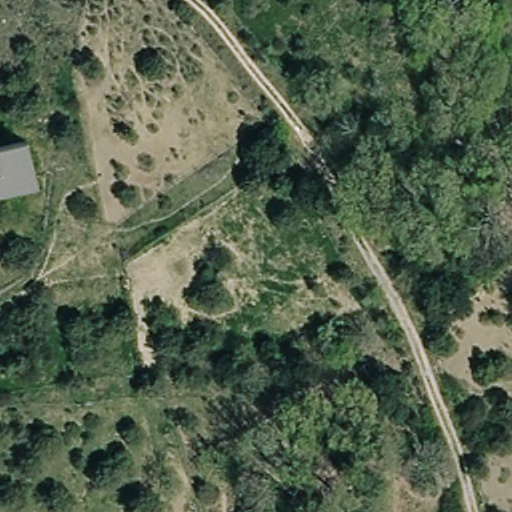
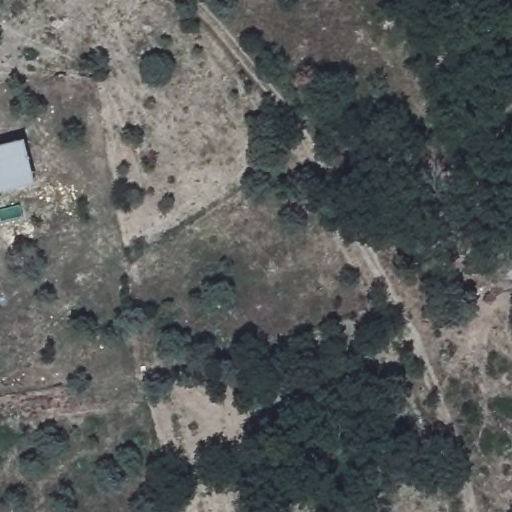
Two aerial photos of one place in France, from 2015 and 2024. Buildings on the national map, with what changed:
unchanged [(22,142),(34,187),(0,195),(0,147),(22,142)]

